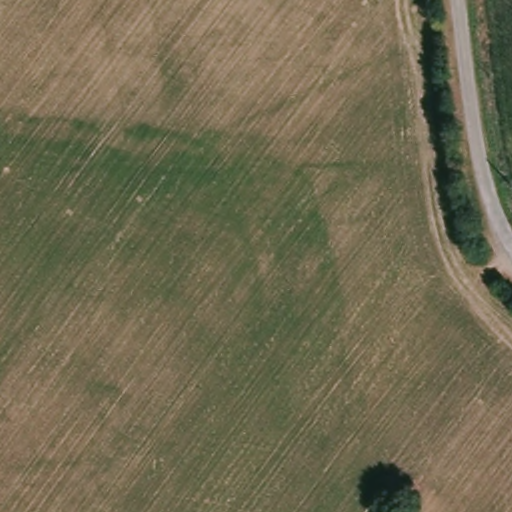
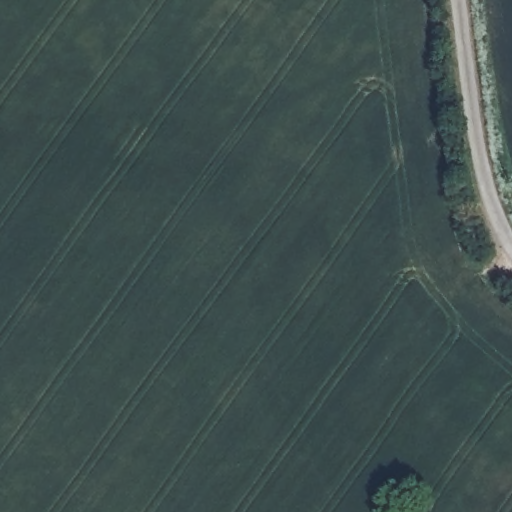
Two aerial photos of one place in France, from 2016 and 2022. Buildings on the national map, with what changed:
[]

